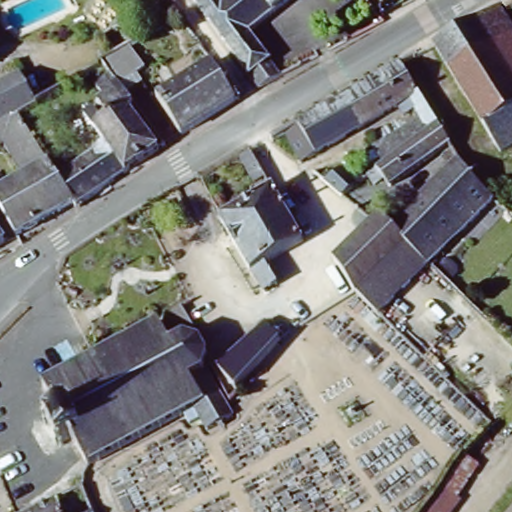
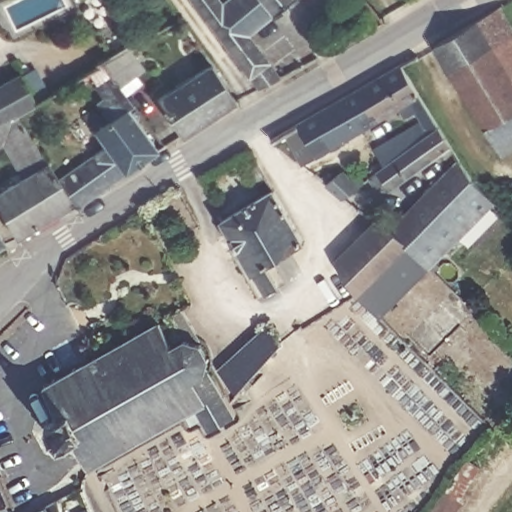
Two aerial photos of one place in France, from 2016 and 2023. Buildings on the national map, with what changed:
unchanged [(196,0),(221,0),(224,5),(230,0),(295,0),(289,5),(255,34),(284,80),(262,92),(196,0)]
unchanged [(481,21),(504,7),(512,20),(512,71),(481,21)]
unchanged [(508,157),(437,46),(481,21),(512,71),(512,155),(508,157)]
unchanged [(102,143),(84,111),(94,106),(103,120),(109,117),(99,99),(106,94),(99,83),(114,73),(106,61),(104,59),(131,43),(146,67),(122,84),(135,101),(131,104),(162,146),(113,184),(90,153),(102,143)]
unchanged [(186,134),(163,97),(216,61),(241,99),(186,134)]
unchanged [(389,174),(379,156),(429,127),(417,107),(305,167),(287,136),(408,68),(453,139),(389,174)]
unchanged [(37,102),(21,111),(17,114),(14,113),(3,121),(0,123),(0,86),(22,74),(37,102)]
unchanged [(6,126),(30,166),(36,162),(39,167),(33,172),(43,189),(58,177),(90,153),(113,184),(80,210),(79,209),(60,218),(21,235),(0,202),(0,192),(10,185),(0,169),(0,127),(1,129),(6,126)]
unchanged [(451,156),(447,152),(396,191),(391,185),(383,190),(375,183),(389,174),(453,139),(459,150),(451,156)]
unchanged [(271,178),(258,185),(243,159),(256,153),(271,178)]
unchanged [(436,267),(413,244),(389,220),(396,214),(404,220),(464,158),(481,184),(485,190),(499,202),(436,267)]
unchanged [(354,180),(359,189),(341,200),(324,186),(339,177),(346,185),(354,180)]
unchanged [(271,300),(258,276),(227,222),(228,222),(279,192),(311,244),(269,269),(284,293),(271,300)]
unchanged [(376,226),(386,216),(389,220),(413,244),(360,296),(341,261),(376,226)]
unchanged [(0,246),(0,227),(8,241),(0,246)]
unchanged [(436,267),(436,268),(384,320),(360,296),(413,244),(436,267)]
unchanged [(48,387),(98,360),(166,322),(179,347),(184,343),(189,341),(196,341),(201,343),(204,346),(209,353),(211,360),(211,366),(208,371),(228,407),(236,420),(213,434),(204,423),(196,427),(191,416),(95,469),(48,387)]
unchanged [(286,347),(238,391),(224,371),(271,327),(286,347)]
unchanged [(241,396),(235,402),(231,398),(238,392),(241,396)]
unchanged [(70,512),(39,512),(62,498),(70,512)]
unchanged [(455,512),(428,512),(436,499),(455,512)]

